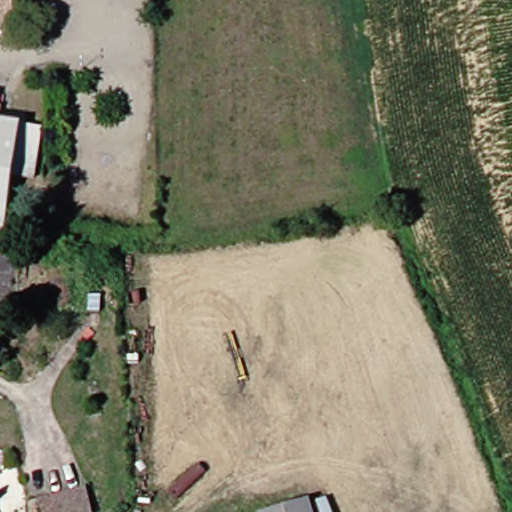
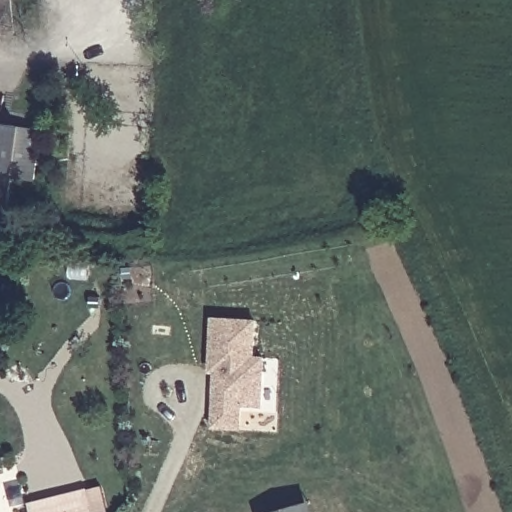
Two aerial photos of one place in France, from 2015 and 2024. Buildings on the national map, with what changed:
unchanged [(9,32),(0,34),(0,0),(2,0),(9,32)]
unchanged [(29,177),(17,177),(6,176),(0,211),(0,122),(19,125),(37,127),(29,177)]
new [(211,373),(207,373),(209,318),(254,320),(253,357),(263,357),(261,408),(241,407),(239,431),(209,429),(211,373)]
unchanged [(84,506),(65,512),(23,512),(22,506),(79,490),(84,506)]
unchanged [(313,512),(260,512),(259,508),(310,497),(313,512)]

